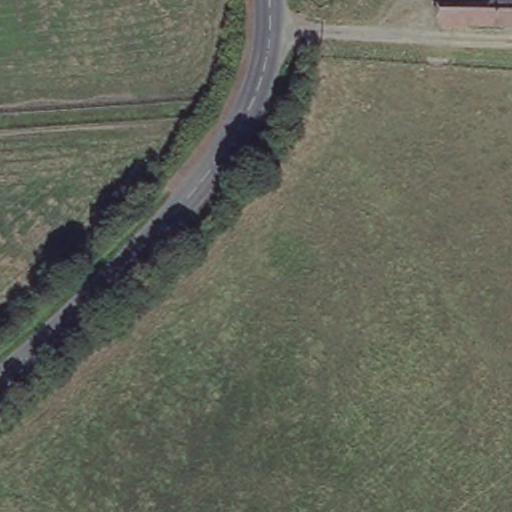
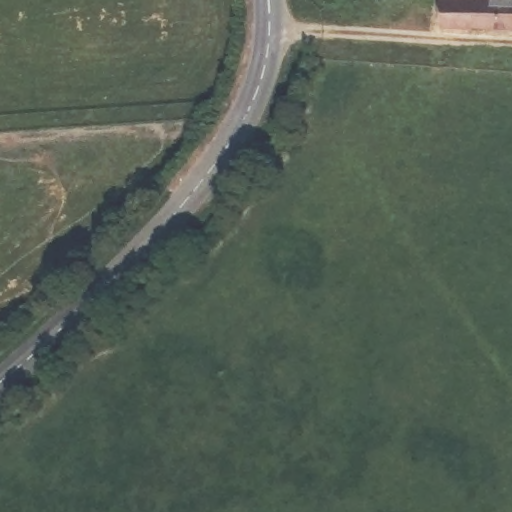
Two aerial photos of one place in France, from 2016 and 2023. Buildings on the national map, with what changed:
unchanged [(512,0),(512,27),(438,27),(438,0),(512,0)]

